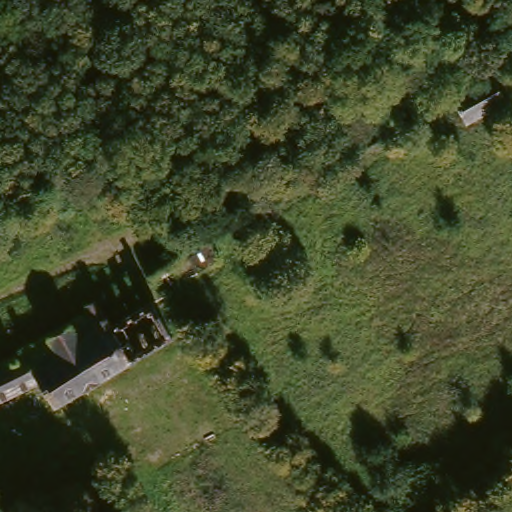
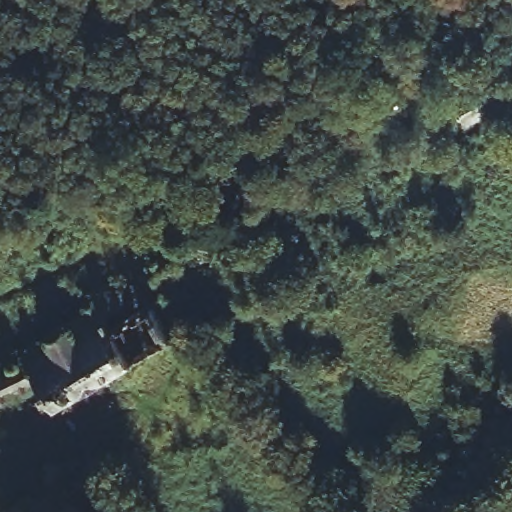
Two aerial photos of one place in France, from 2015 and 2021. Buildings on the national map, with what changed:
unchanged [(491,76),(505,102),(465,125),(452,99),(491,76)]
unchanged [(208,241),(219,261),(188,278),(177,257),(208,241)]
unchanged [(166,257),(175,270),(154,282),(147,269),(166,257)]
unchanged [(151,301),(171,337),(53,407),(38,382),(21,354),(20,352),(89,313),(86,306),(95,301),(110,326),(151,301)]
unchanged [(0,400),(0,364),(21,354),(38,382),(0,400)]

